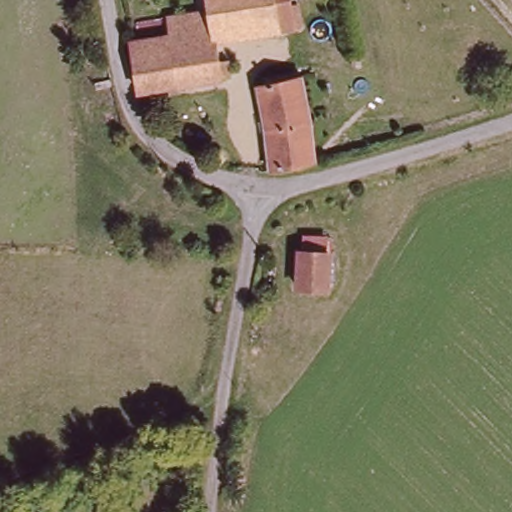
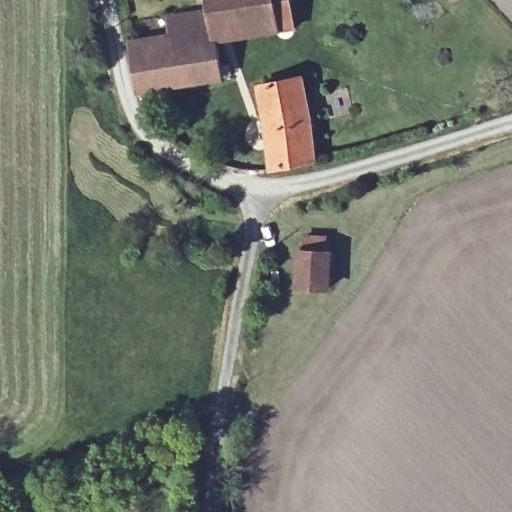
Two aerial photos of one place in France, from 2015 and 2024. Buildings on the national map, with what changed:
unchanged [(167,42),(165,25),(207,17),(206,0),(289,0),(292,12),(298,11),(302,33),(216,46),(221,84),(139,96),(132,48),(167,42)]
unchanged [(276,169),(260,89),(301,79),(316,113),(321,160),(276,169)]
unchanged [(331,293),(301,292),(301,257),(308,255),(308,242),(329,242),(328,260),(332,259),(331,293)]

